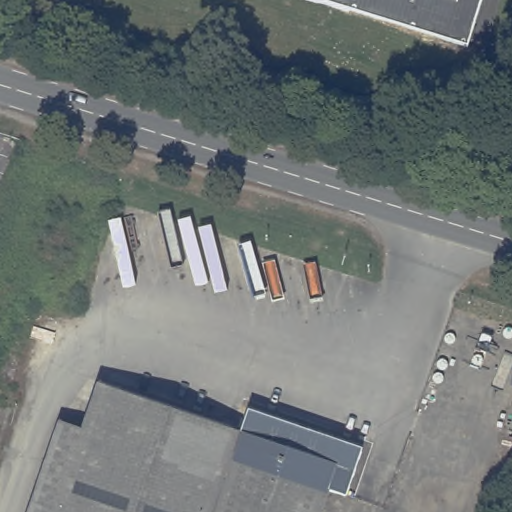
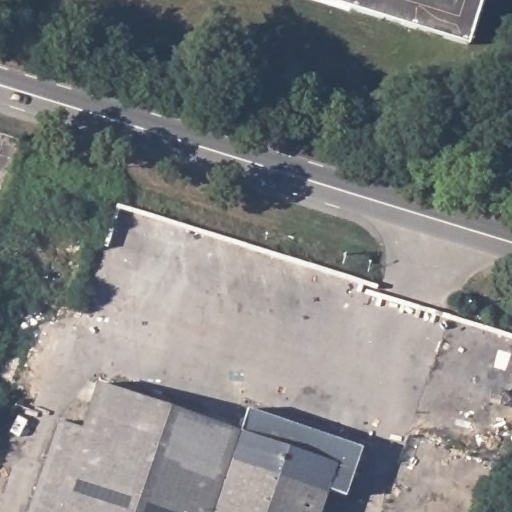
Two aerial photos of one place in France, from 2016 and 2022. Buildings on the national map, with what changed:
unchanged [(466,45),(323,0),(480,0),(466,45)]
unchanged [(0,383),(0,369),(5,353),(21,358),(11,387),(0,383)]
unchanged [(82,429),(98,382),(241,431),(248,408),(363,448),(347,496),(329,490),(321,512),(27,512),(58,421),(82,429)]

